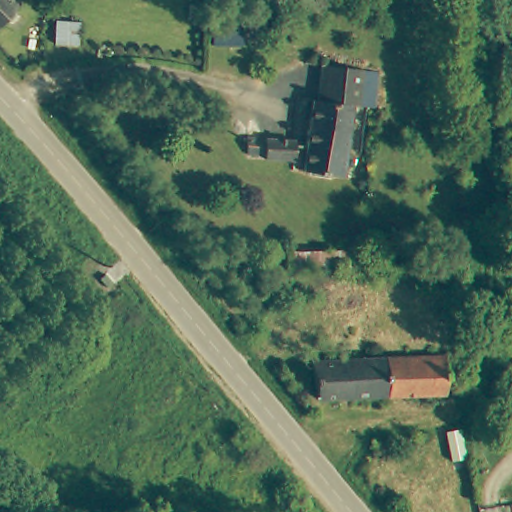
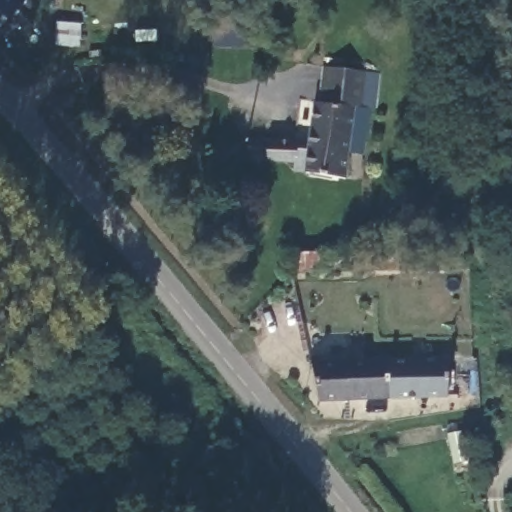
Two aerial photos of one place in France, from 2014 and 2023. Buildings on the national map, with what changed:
unchanged [(0,0),(16,0),(22,5),(0,28),(0,0)]
unchanged [(363,87),(356,139),(323,133),(318,132),(327,77),(363,87)]
unchanged [(294,161),(267,155),(249,150),(245,150),(247,140),(249,130),(271,135),(297,141),(294,161)]
unchanged [(323,133),(356,139),(350,180),(313,172),(318,132),(323,133)]
unchanged [(368,255),(370,274),(295,275),(292,256),(368,255)]
unchanged [(392,361),(447,359),(447,399),(394,401),(392,361)]
unchanged [(316,404),(307,363),(377,361),(392,361),(394,401),(316,404)]

